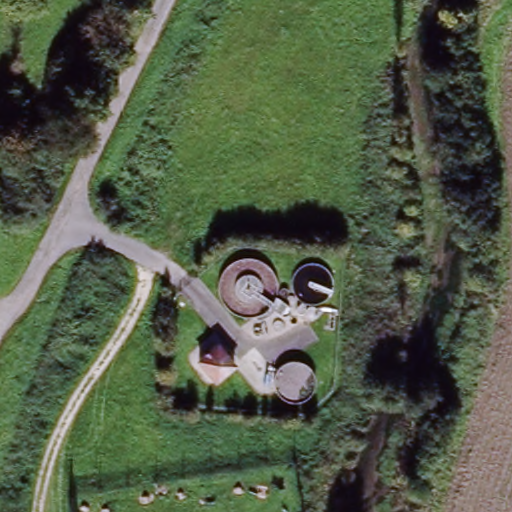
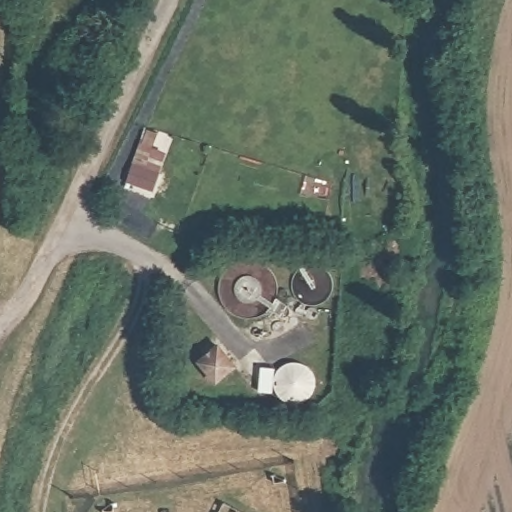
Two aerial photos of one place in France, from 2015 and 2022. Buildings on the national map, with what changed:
new [(158,132),(152,150),(167,153),(152,192),(125,183),(145,129),(158,132)]
unchanged [(218,385),(200,364),(220,346),(238,366),(218,385)]

